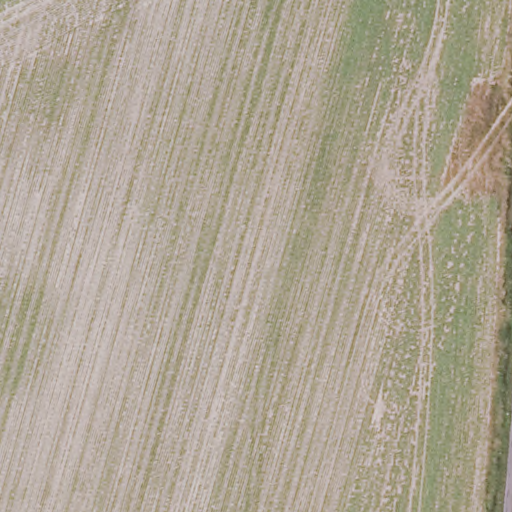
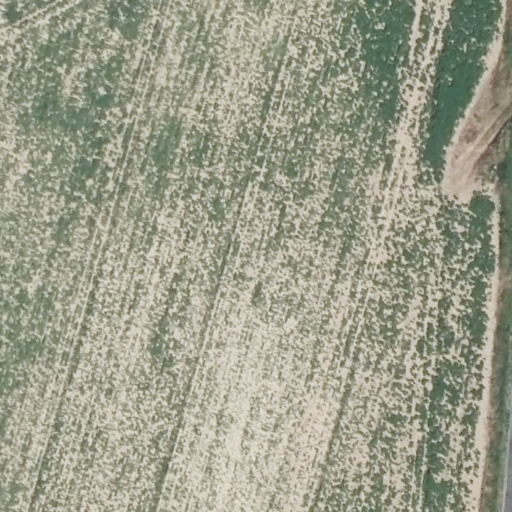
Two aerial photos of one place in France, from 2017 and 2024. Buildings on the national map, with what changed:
[]

